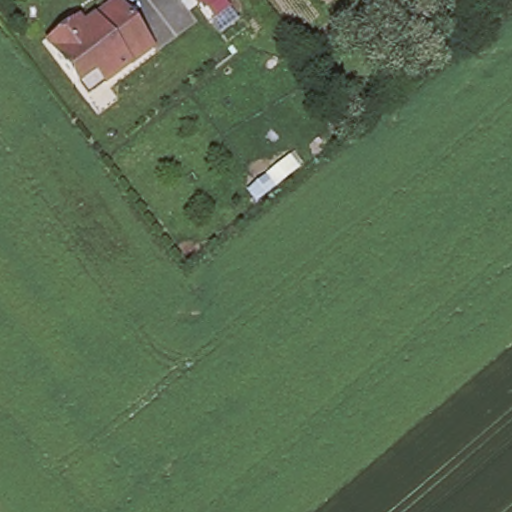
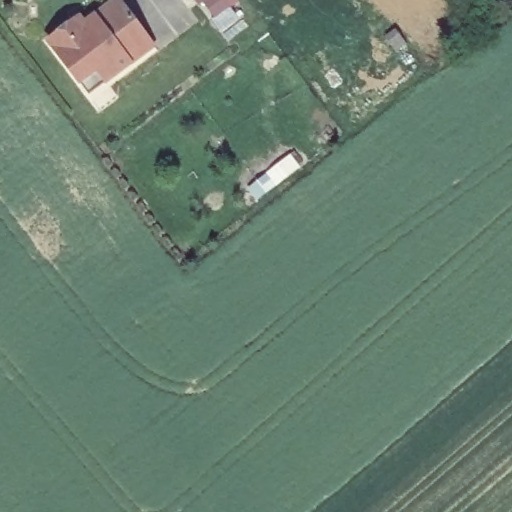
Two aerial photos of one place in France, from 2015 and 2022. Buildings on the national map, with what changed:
unchanged [(41,40),(59,26),(73,16),(77,23),(109,0),(110,0),(145,47),(98,81),(82,94),(71,80),(41,40)]

